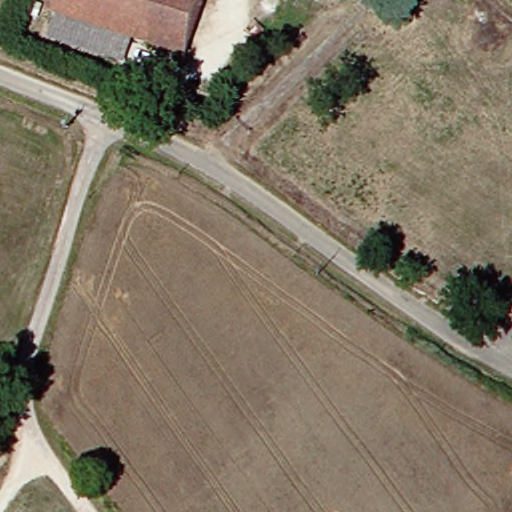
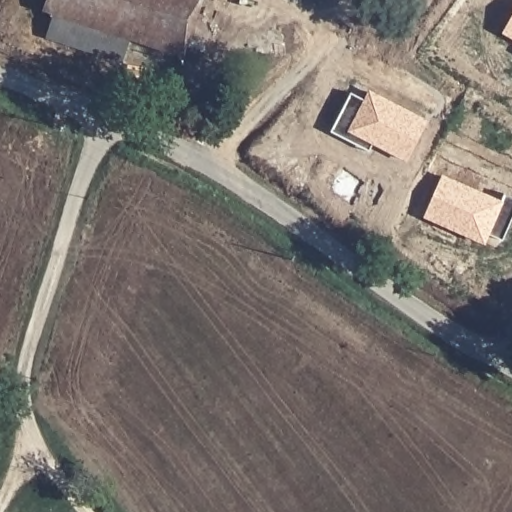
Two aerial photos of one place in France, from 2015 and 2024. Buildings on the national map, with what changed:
unchanged [(60,36),(67,14),(56,10),(59,0),(212,0),(205,22),(167,10),(156,43),(138,37),(132,59),(117,54),(60,36)]
unchanged [(167,10),(205,22),(195,55),(156,43),(167,10)]
new [(512,13),(512,38),(502,32),(512,13)]
new [(407,161),(373,143),(369,151),(330,131),(350,92),(364,99),(370,88),(427,120),(407,161)]
new [(490,232),(485,245),(423,217),(442,172),(502,200),(505,193),(512,197),(512,218),(504,239),(490,232)]

